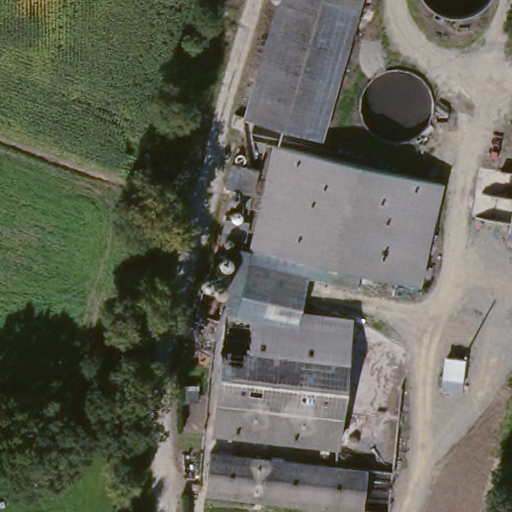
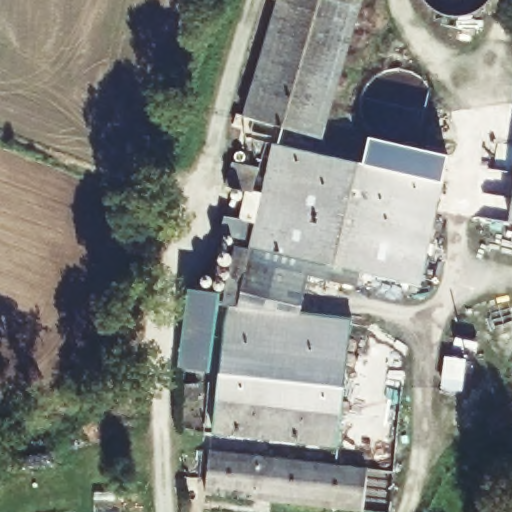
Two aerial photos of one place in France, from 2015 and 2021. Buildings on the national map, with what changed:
unchanged [(244,117),(245,115),(278,0),(360,0),(320,139),(244,117)]
new [(447,156),(442,185),(438,184),(363,167),(368,138),(447,156)]
unchanged [(438,184),(415,289),(247,251),(270,147),(438,184)]
new [(512,197),(512,227),(507,226),(512,197)]
unchanged [(230,249),(244,252),(231,304),(230,308),(230,312),(227,311),(216,309),(220,295),(230,249)]
unchanged [(245,354),(251,321),(232,316),(247,251),(310,265),(301,308),(358,316),(350,367),(245,354)]
new [(217,291),(209,374),(177,370),(187,287),(217,291)]
demolished [(214,321),(191,315),(196,289),(220,295),(216,309),(214,321)]
unchanged [(350,367),(338,452),(210,436),(220,351),(350,367)]
unchanged [(205,494),(209,452),(366,470),(362,512),(205,494)]

